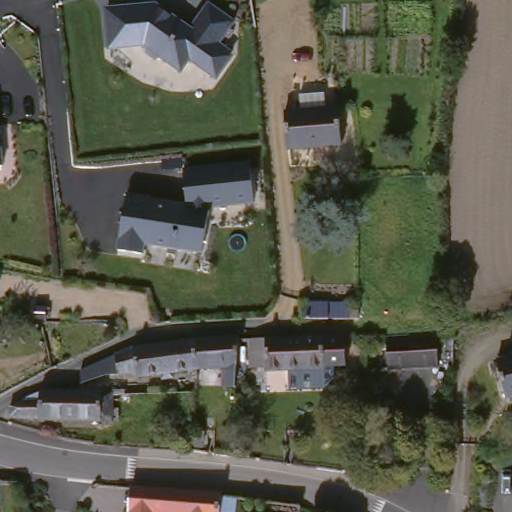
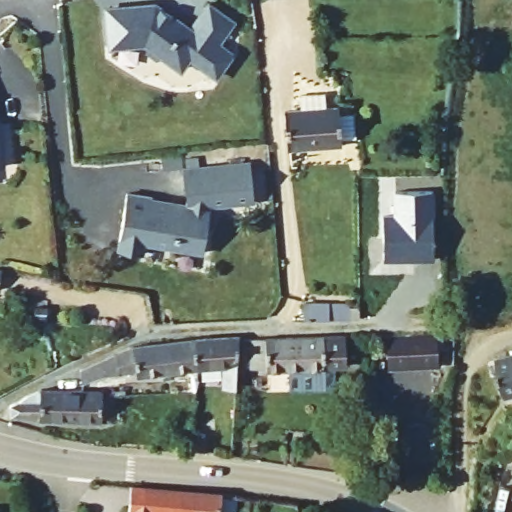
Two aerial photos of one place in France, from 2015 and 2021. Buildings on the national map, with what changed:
unchanged [(195,20),(207,0),(213,0),(245,17),(231,37),(246,46),(227,77),(144,47),(108,46),(103,6),(154,3),(195,20)]
unchanged [(343,96),(343,139),(291,139),(291,97),(343,96)]
unchanged [(4,165),(0,165),(0,106),(4,165)]
unchanged [(184,205),(184,171),(252,163),(258,203),(213,210),(204,251),(156,245),(151,255),(117,246),(128,196),(184,205)]
new [(383,214),(396,214),(397,190),(433,190),(434,216),(434,259),(383,260),(383,214)]
demolished [(17,258),(13,277),(0,274),(0,254),(17,258)]
new [(8,269),(3,288),(0,288),(0,267),(8,269)]
unchanged [(321,324),(320,307),(359,304),(361,323),(321,324)]
unchanged [(225,378),(226,361),(203,362),(203,369),(201,369),(198,333),(242,328),(243,334),(239,379),(225,378)]
unchanged [(441,366),(389,373),(384,338),(436,329),(441,366)]
unchanged [(343,359),(334,359),(336,375),(328,384),(291,385),(290,365),(267,365),(266,361),(251,361),(251,334),(345,330),(343,359)]
unchanged [(139,369),(139,367),(87,368),(87,363),(138,340),(198,333),(201,369),(195,369),(194,365),(139,369)]
unchanged [(512,350),(512,393),(501,352),(512,350)]
unchanged [(108,387),(107,394),(106,418),(5,417),(6,405),(19,395),(40,384),(78,386),(108,387)]
unchanged [(221,512),(199,512),(156,509),(156,512),(131,512),(133,483),(224,490),(221,512)]

